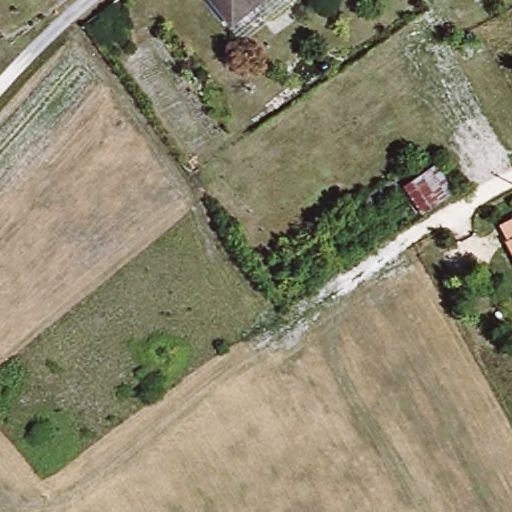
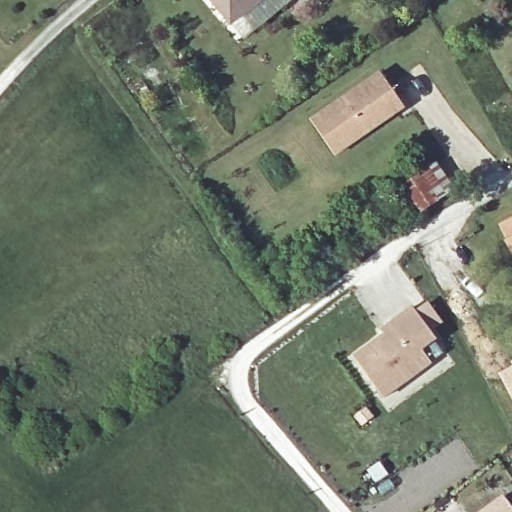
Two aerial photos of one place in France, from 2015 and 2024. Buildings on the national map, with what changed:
unchanged [(219,0),(258,0),(235,19),(219,0)]
new [(381,71),(407,107),(338,154),(312,119),(381,71)]
unchanged [(437,159),(458,193),(436,205),(425,211),(403,179),(415,172),(437,159)]
unchanged [(504,223),(512,219),(512,237),(504,223)]
new [(439,339),(424,350),(434,366),(387,399),(356,357),(385,335),(380,330),(412,306),(439,339)]
new [(512,371),(512,388),(505,374),(512,371)]
new [(503,496),(507,503),(512,509),(512,512),(481,512),(503,496)]

